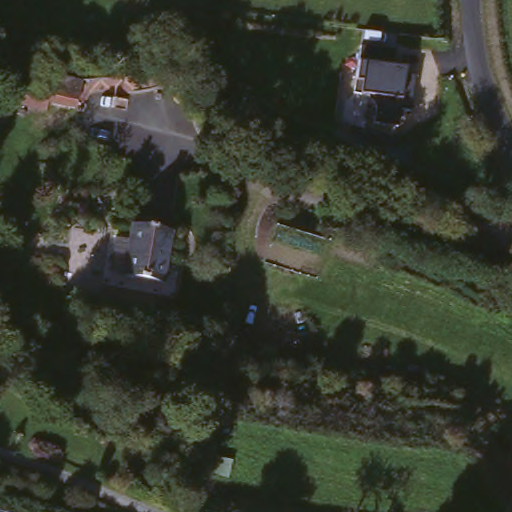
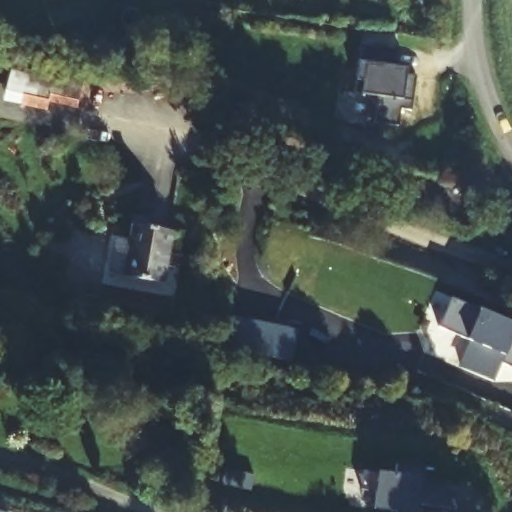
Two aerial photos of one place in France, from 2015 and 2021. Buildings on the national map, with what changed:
unchanged [(409,109),(399,108),(397,125),(377,121),(381,99),(362,94),(363,82),(356,81),(361,42),(396,50),(394,67),(417,72),(409,109)]
unchanged [(23,101),(32,70),(86,79),(79,111),(23,101)]
unchanged [(167,279),(122,275),(133,221),(181,225),(167,279)]
new [(512,326),(512,370),(507,367),(500,384),(468,371),(479,346),(444,332),(456,302),(512,326)]
new [(254,320),(298,330),(291,360),(247,351),(254,320)]
new [(423,487),(452,491),(449,507),(419,503),(417,512),(399,512),(399,510),(374,506),(375,491),(362,490),(366,470),(379,472),(394,473),(396,465),(423,467),(424,477),(423,487)]

